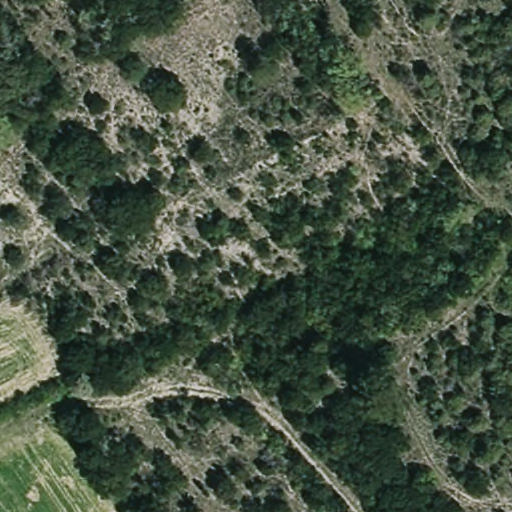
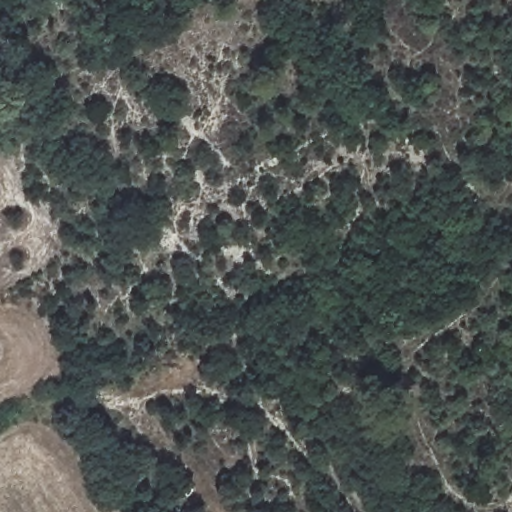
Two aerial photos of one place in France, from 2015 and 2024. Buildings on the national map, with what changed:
[]

